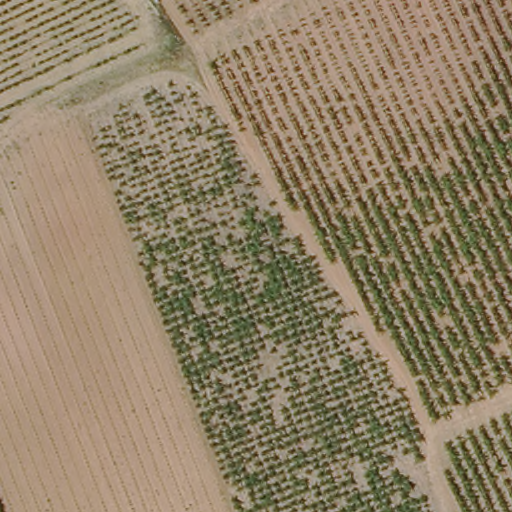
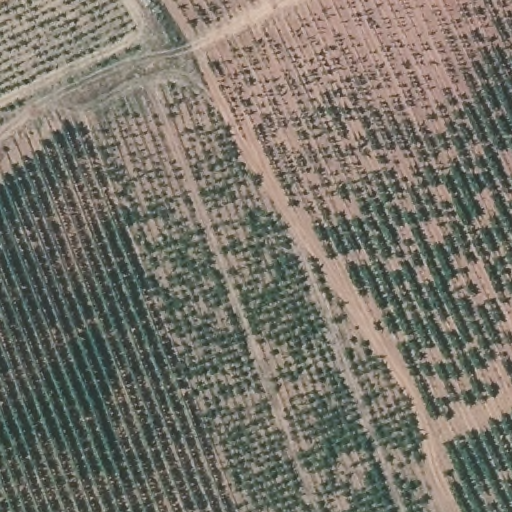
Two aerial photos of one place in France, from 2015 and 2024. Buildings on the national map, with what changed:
[]

